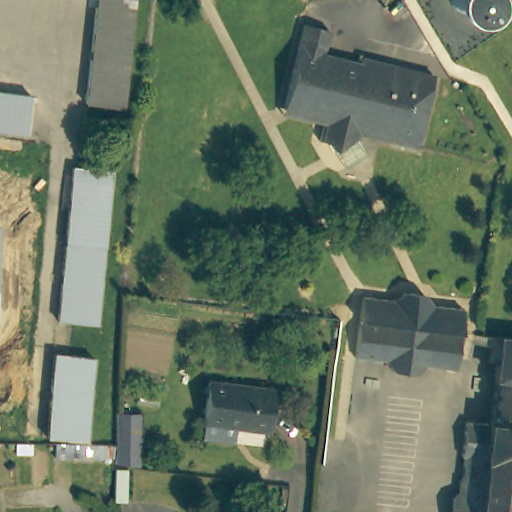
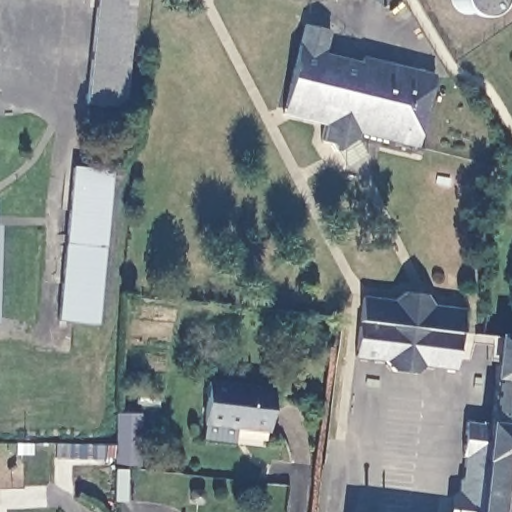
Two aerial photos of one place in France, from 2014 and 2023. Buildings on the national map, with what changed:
unchanged [(100,0),(135,0),(125,106),(90,104),(100,0)]
unchanged [(335,154),(332,147),(320,144),(325,126),(282,116),(283,111),(305,25),(331,32),(324,54),(361,64),(362,59),(433,78),(415,148),(360,134),(357,141),(365,156),(344,169),(335,154)]
demolished [(31,117),(0,113),(0,93),(34,98),(31,117)]
demolished [(0,133),(0,113),(31,117),(29,136),(0,133)]
unchanged [(119,175),(105,326),(65,322),(79,174),(119,175)]
unchanged [(428,366),(415,376),(401,375),(391,361),(382,361),(359,359),(363,322),(365,297),(395,300),(406,292),(427,295),(433,305),(466,308),(463,332),(459,369),(428,366)]
unchanged [(512,342),(512,512),(453,512),(454,502),(460,495),(462,484),(465,485),(468,460),(465,459),(470,425),(493,428),(499,381),(496,381),(501,340),(509,341),(512,342)]
demolished [(100,359),(90,441),(51,437),(61,355),(100,359)]
unchanged [(276,395),(270,436),(207,429),(212,387),(276,395)]
unchanged [(120,448),(121,410),(145,410),(144,464),(120,460),(120,448)]
unchanged [(130,471),(130,500),(120,500),(120,471),(130,471)]

